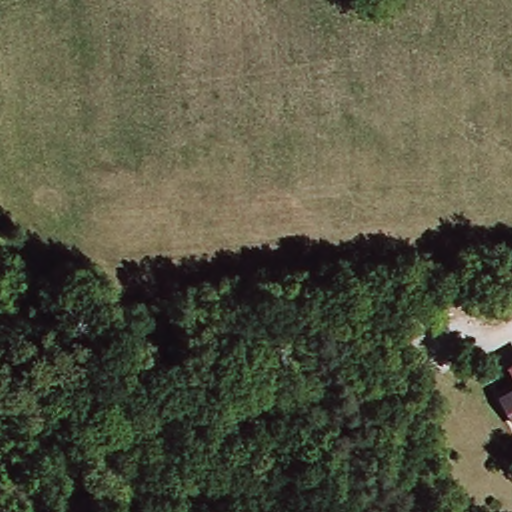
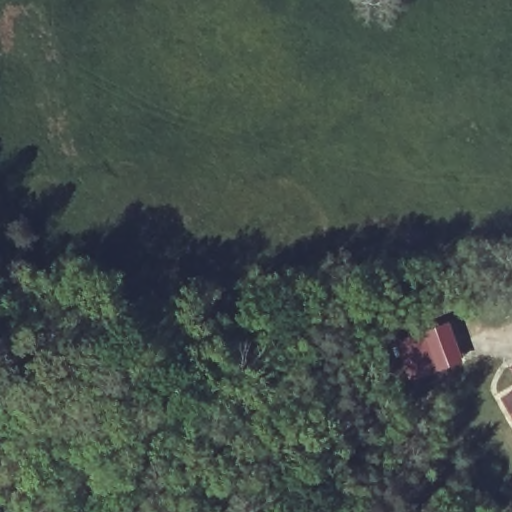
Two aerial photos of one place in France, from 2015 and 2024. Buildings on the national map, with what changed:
new [(394,341),(448,321),(462,361),(409,381),(394,341)]
unchanged [(505,397),(512,392),(512,410),(505,397)]

